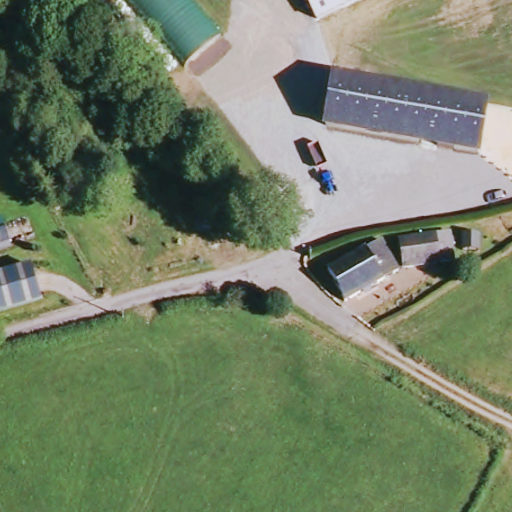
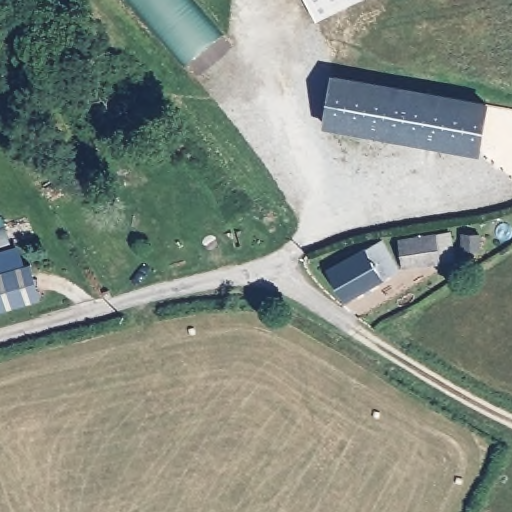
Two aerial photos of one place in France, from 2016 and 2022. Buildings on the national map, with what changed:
unchanged [(186,0),(216,35),(185,63),(132,0),(186,0)]
unchanged [(359,0),(317,21),(306,0),(359,0)]
unchanged [(345,130),(325,126),(335,77),(335,73),(495,100),(486,153),(345,130)]
unchanged [(17,247),(0,253),(0,230),(8,227),(17,247)]
unchanged [(460,255),(412,264),(407,238),(456,229),(460,255)]
unchanged [(405,269),(352,302),(332,272),(388,242),(405,269)]
unchanged [(27,263),(35,298),(0,307),(0,270),(27,263)]

